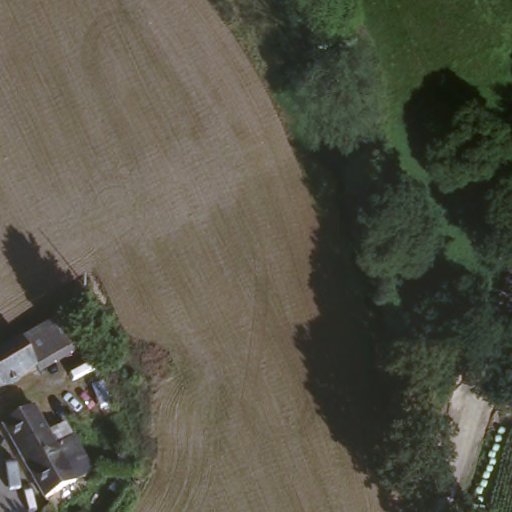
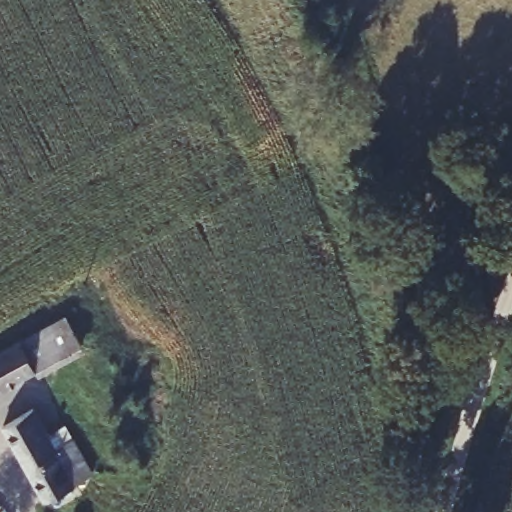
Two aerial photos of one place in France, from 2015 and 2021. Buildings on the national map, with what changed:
unchanged [(76,312),(91,343),(45,367),(29,336),(76,312)]
unchanged [(0,351),(29,336),(45,367),(0,391),(0,351)]
unchanged [(91,457),(98,471),(79,481),(81,485),(53,500),(12,422),(43,407),(64,446),(81,437),(91,457)]

